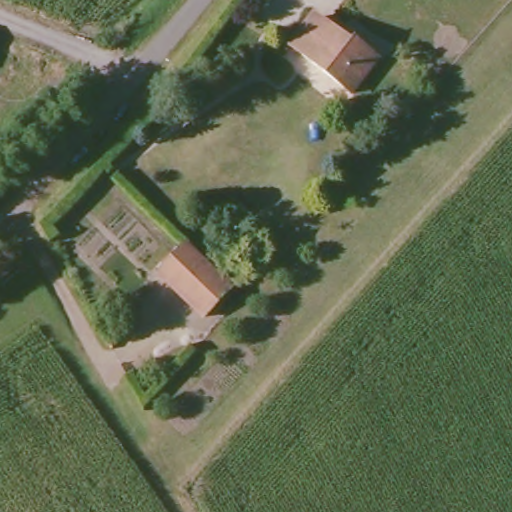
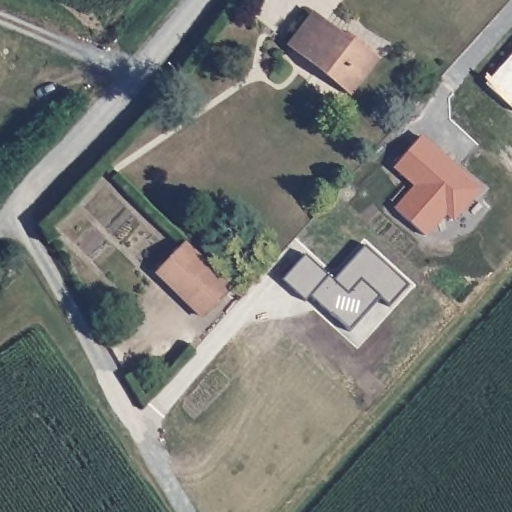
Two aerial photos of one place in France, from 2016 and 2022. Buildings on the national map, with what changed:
unchanged [(315,14),(326,22),(329,19),(356,40),(358,36),(381,55),(350,93),(290,47),(315,14)]
new [(512,58),(512,111),(485,87),(512,58)]
new [(422,138),(445,159),(441,163),(454,175),(457,171),(480,191),(454,221),(446,214),(425,237),(395,211),(416,187),(395,167),(422,138)]
new [(334,281),(365,246),(410,287),(390,308),(381,301),(350,334),(310,298),(305,303),(281,281),(306,255),(334,281)]
unchanged [(229,290),(202,317),(158,274),(184,247),(229,290)]

